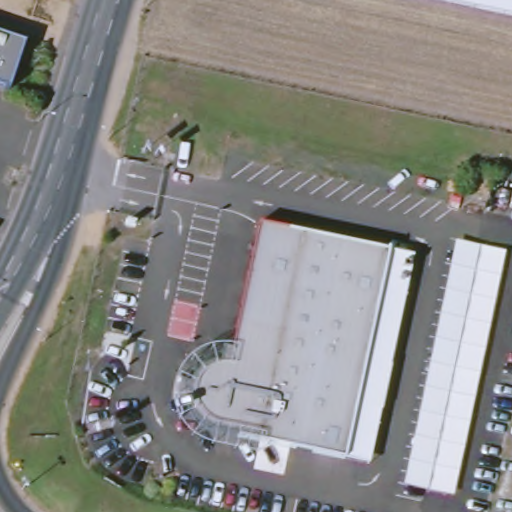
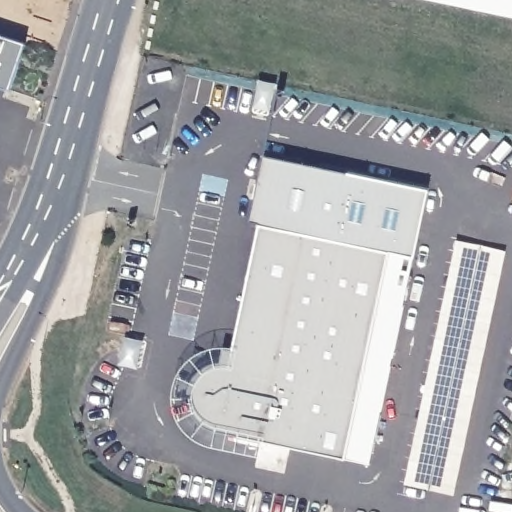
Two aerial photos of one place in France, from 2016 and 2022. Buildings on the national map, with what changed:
unchanged [(512,0),(512,17),(431,0),(512,0)]
unchanged [(27,45),(11,92),(0,88),(0,36),(27,45)]
new [(251,217),(263,149),(428,179),(413,247),(402,246),(378,241),(255,219),(251,217)]
unchanged [(253,437),(202,423),(192,417),(187,410),(182,398),(182,389),(183,380),(188,370),(196,362),(206,357),(216,355),(226,355),(229,343),(232,344),(255,219),(378,241),(340,455),(253,437)]
unchanged [(402,246),(363,460),(340,455),(378,241),(402,246)]

